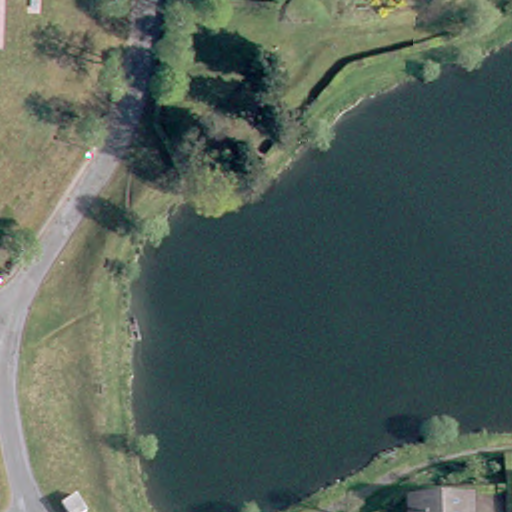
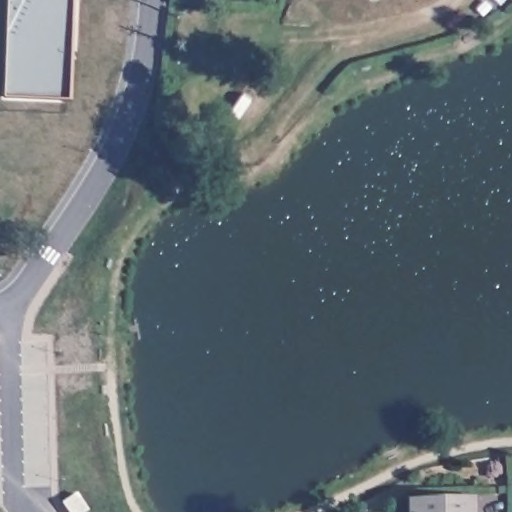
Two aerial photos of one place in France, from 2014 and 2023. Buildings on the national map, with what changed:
new [(61,96),(65,95),(68,94),(67,105),(2,101),(8,0),(13,0),(7,91),(10,91),(11,85),(47,87),(49,91),(52,95),(56,96),(61,96)]
new [(67,105),(68,94),(65,95),(61,96),(56,96),(52,95),(49,91),(47,87),(11,85),(10,91),(7,91),(13,0),(76,0),(70,105),(67,105)]
unchanged [(469,512),(408,512),(408,500),(469,503),(469,512)]

